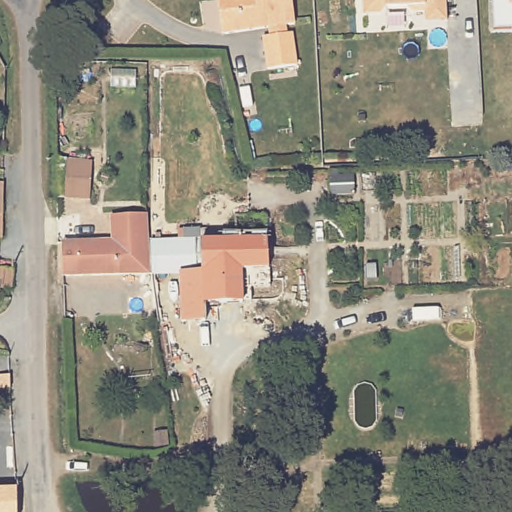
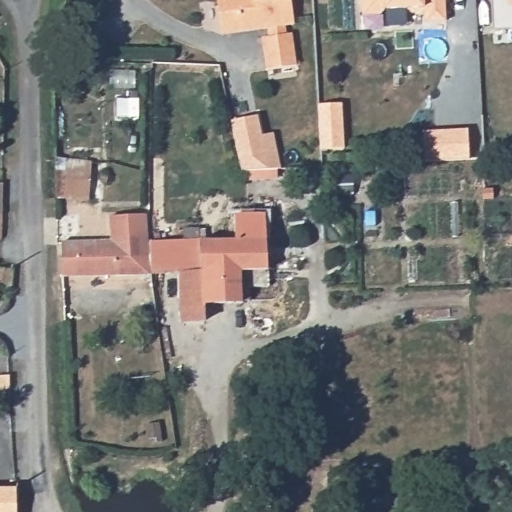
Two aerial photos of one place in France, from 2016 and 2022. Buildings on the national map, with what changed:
unchanged [(293,26),(284,27),(285,36),(291,35),(295,67),(266,72),(262,40),(269,39),(267,30),(221,37),(216,0),(289,0),(293,26)]
unchanged [(427,24),(426,14),(413,15),(408,10),(386,12),(381,17),(364,18),(363,0),(446,0),(447,7),(448,22),(427,24)]
unchanged [(510,10),(510,0),(512,0),(512,9),(510,10)]
new [(344,102),(345,149),(321,150),(319,104),(344,102)]
new [(259,114),(263,134),(275,132),(283,168),(241,171),(231,120),(259,114)]
new [(470,129),(472,160),(422,162),(421,131),(470,129)]
unchanged [(67,164),(94,165),(91,201),(66,201),(67,164)]
unchanged [(0,184),(2,184),(1,241),(0,240),(0,184)]
unchanged [(63,274),(62,240),(111,239),(111,213),(146,211),(148,238),(151,238),(151,270),(63,274)]
unchanged [(269,269),(238,269),(205,270),(205,282),(188,282),(188,270),(179,270),(151,270),(151,238),(237,238),(266,237),(269,245),(269,269)]
unchanged [(0,266),(11,267),(10,287),(0,286),(0,266)]
unchanged [(179,270),(188,270),(188,282),(205,282),(205,270),(238,269),(240,303),(203,304),(204,322),(181,322),(179,270)]
unchanged [(0,377),(7,377),(8,391),(0,391),(0,377)]
unchanged [(15,512),(0,512),(0,486),(14,486),(15,512)]

